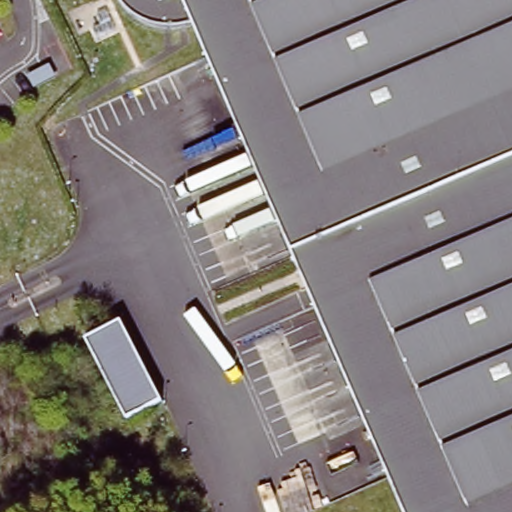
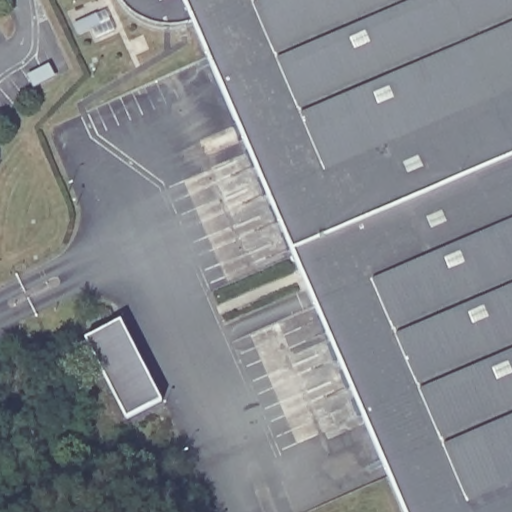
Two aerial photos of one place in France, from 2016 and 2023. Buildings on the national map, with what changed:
unchanged [(395,512),(185,22),(162,23),(145,21),(131,13),(118,0),(512,0),(512,512),(395,512)]
unchanged [(82,338),(117,321),(158,400),(123,418),(82,338)]

